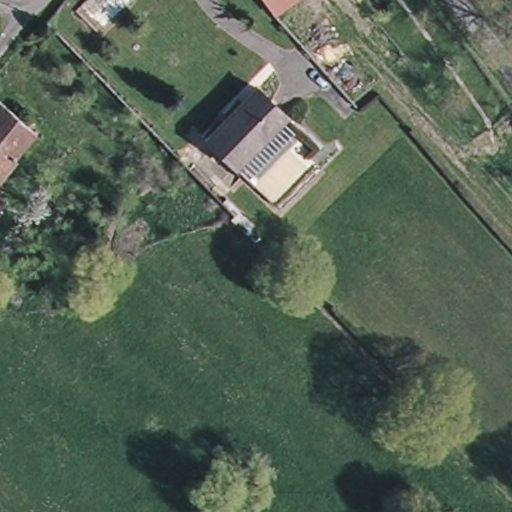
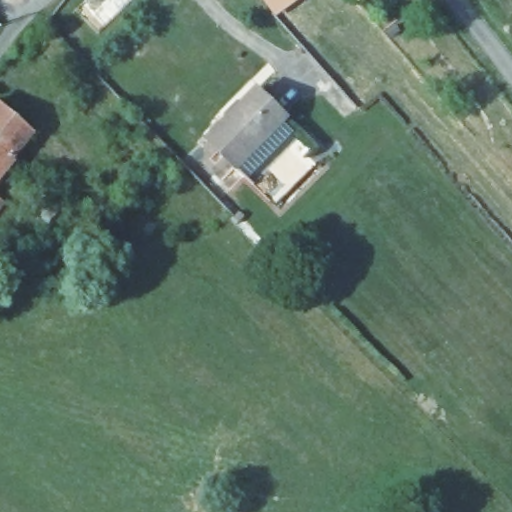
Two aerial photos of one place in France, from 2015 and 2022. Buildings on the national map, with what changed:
unchanged [(267,6),(262,0),(274,0),(267,6)]
unchanged [(255,87),(284,116),(233,166),(205,138),(255,87)]
unchanged [(30,131),(7,158),(0,152),(0,106),(30,131)]
unchanged [(7,158),(12,162),(0,176),(0,152),(7,158)]
unchanged [(0,208),(0,201),(3,205),(0,208)]

